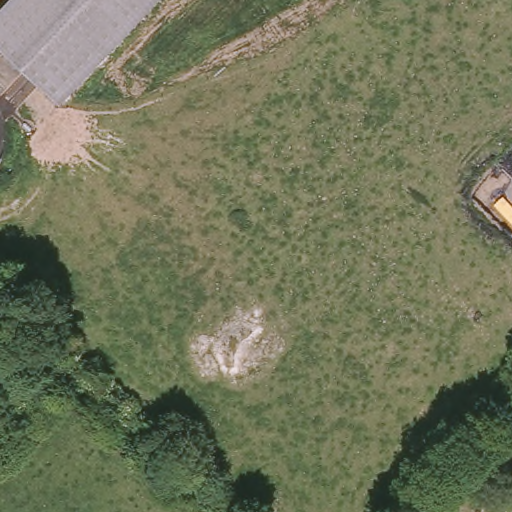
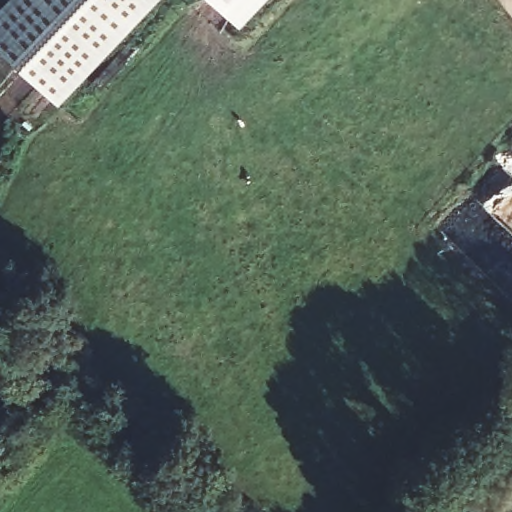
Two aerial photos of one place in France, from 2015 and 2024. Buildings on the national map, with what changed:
unchanged [(0,11),(11,0),(160,0),(63,103),(0,46),(0,11)]
new [(242,29),(210,0),(268,0),(242,29)]

